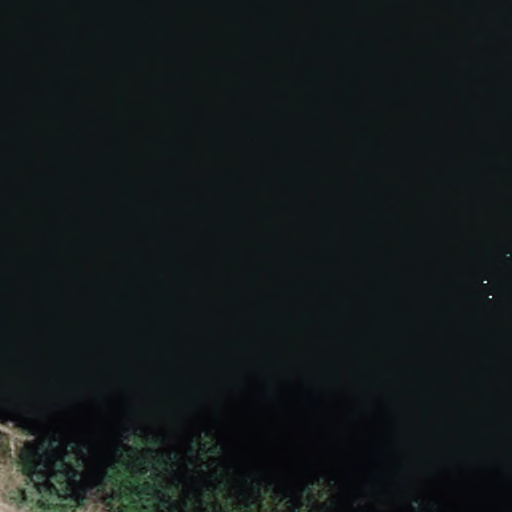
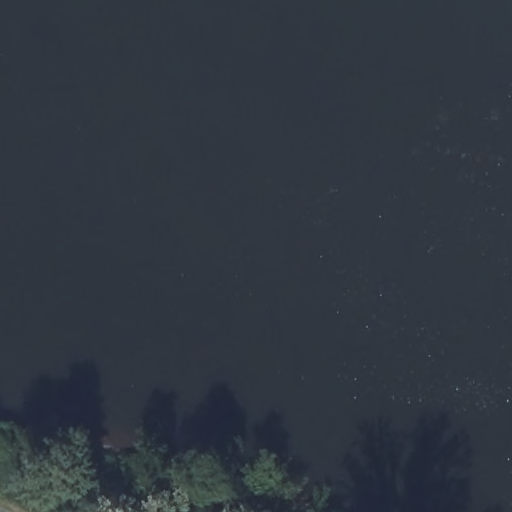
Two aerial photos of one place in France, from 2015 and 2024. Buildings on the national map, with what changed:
[]

